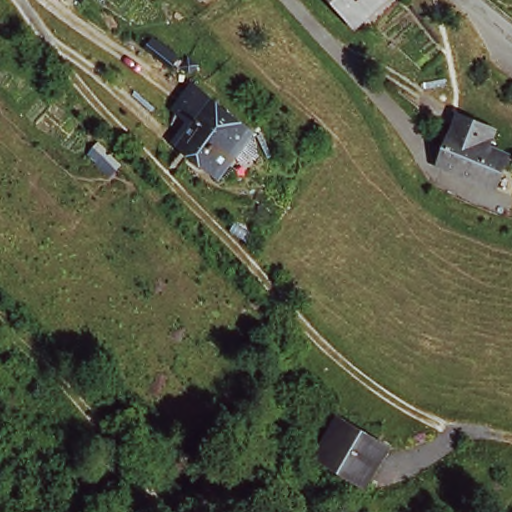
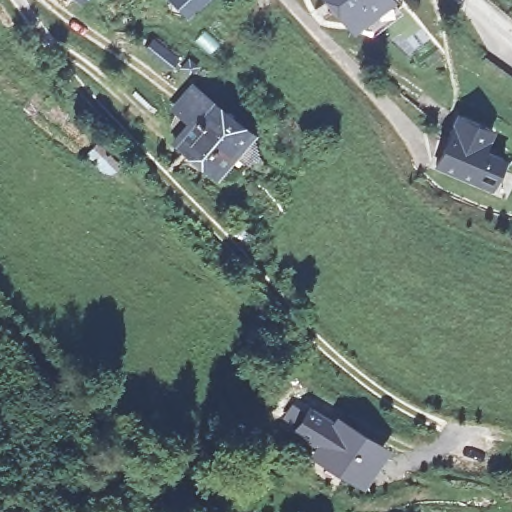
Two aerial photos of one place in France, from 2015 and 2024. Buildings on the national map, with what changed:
new [(190,19),(169,0),(208,0),(190,19)]
unchanged [(350,18),(335,0),(377,0),(350,18)]
unchanged [(484,80),(500,59),(512,67),(512,102),(504,96),(484,80)]
unchanged [(197,85),(253,126),(222,167),(182,138),(199,117),(184,104),(197,85)]
unchanged [(490,131),(480,153),(499,163),(486,188),(437,163),(457,117),(490,131)]
unchanged [(357,475),(324,448),(345,421),(381,451),(357,475)]

